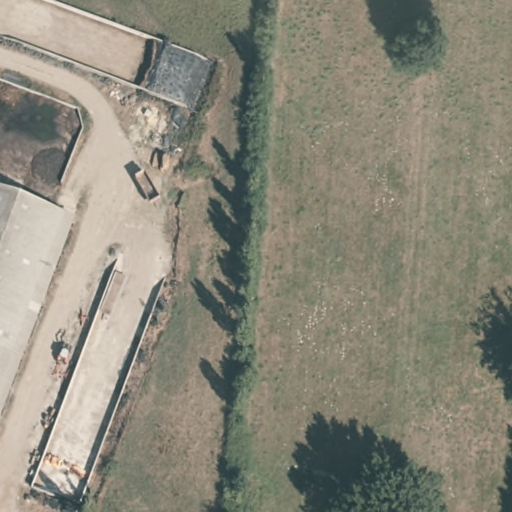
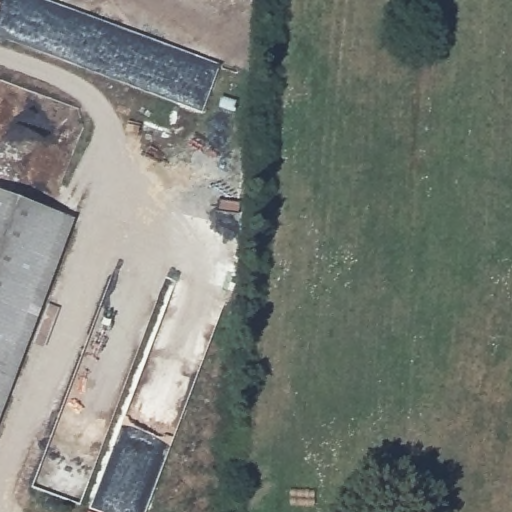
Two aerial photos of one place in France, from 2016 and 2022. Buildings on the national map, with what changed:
unchanged [(0,412),(0,196),(67,220),(0,412)]

